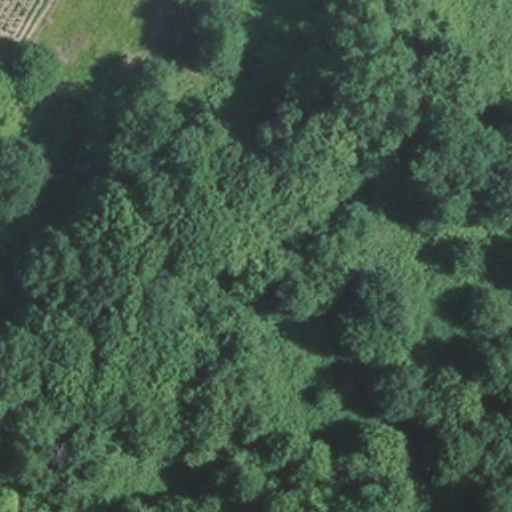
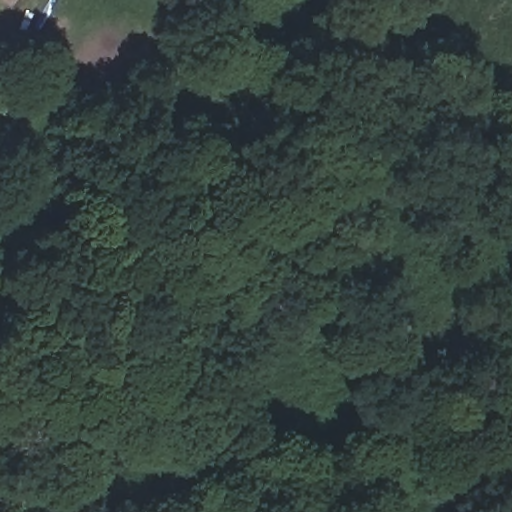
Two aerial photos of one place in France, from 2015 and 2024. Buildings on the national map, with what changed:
[]

